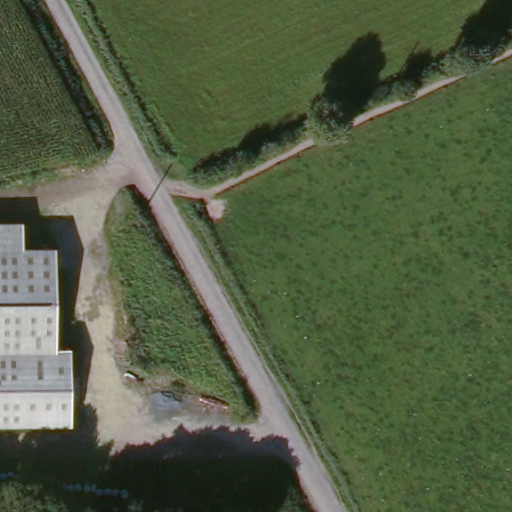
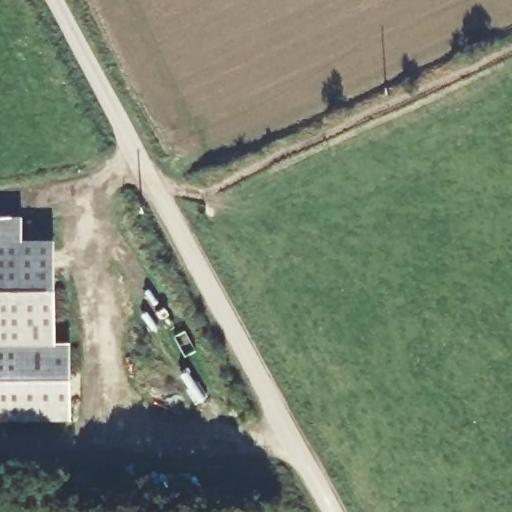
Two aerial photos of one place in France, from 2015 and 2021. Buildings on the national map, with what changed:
unchanged [(25,246),(55,247),(57,346),(70,346),(70,420),(0,420),(0,217),(25,216),(25,246)]

